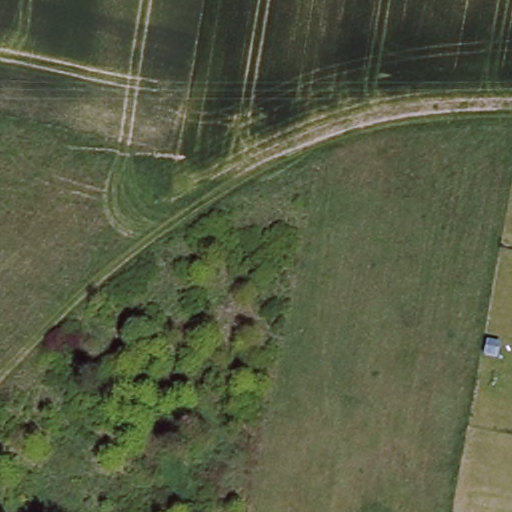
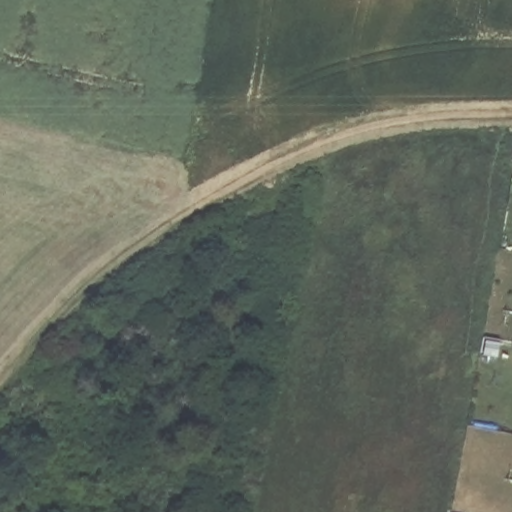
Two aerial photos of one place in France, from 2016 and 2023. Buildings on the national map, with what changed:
[]

